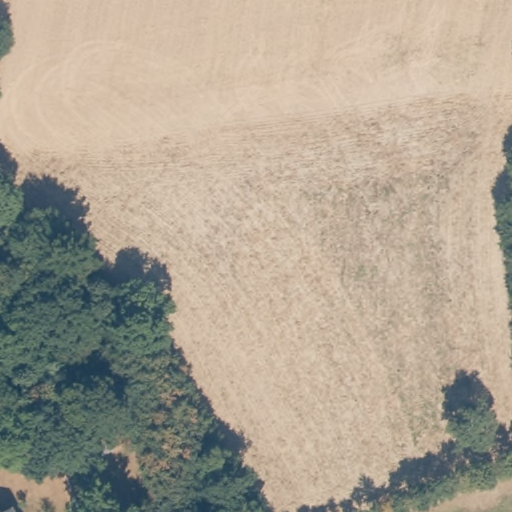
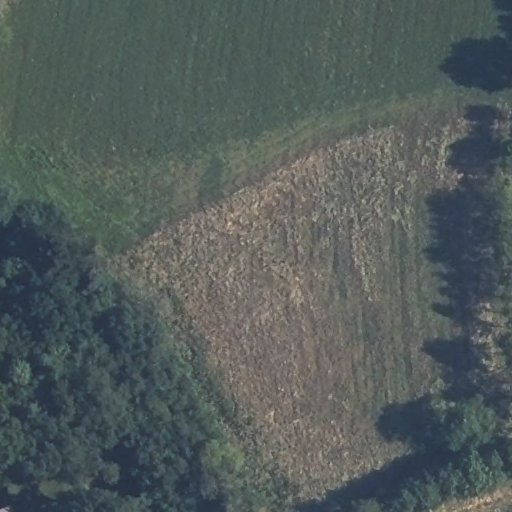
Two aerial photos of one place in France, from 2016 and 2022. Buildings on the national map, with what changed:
unchanged [(9,506),(12,512),(0,512),(0,511),(9,506)]
unchanged [(18,512),(16,512),(18,511),(18,512)]

